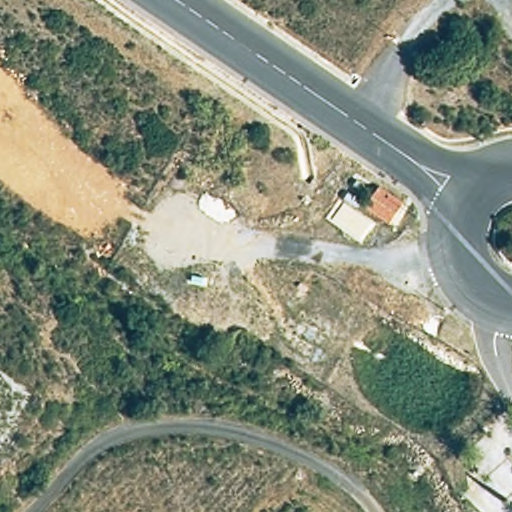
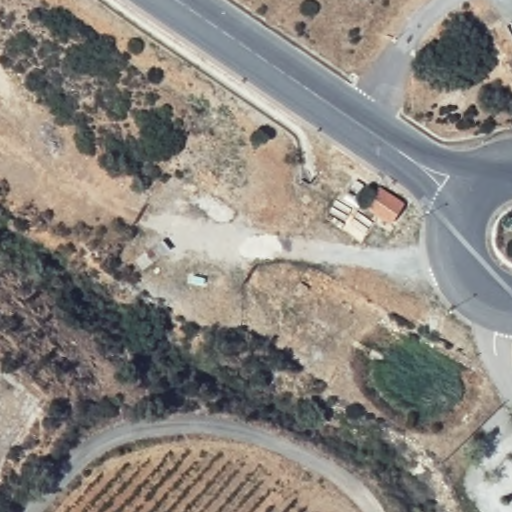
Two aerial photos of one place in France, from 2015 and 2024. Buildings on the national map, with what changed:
unchanged [(391,226),(362,209),(379,183),(406,201),(391,226)]

